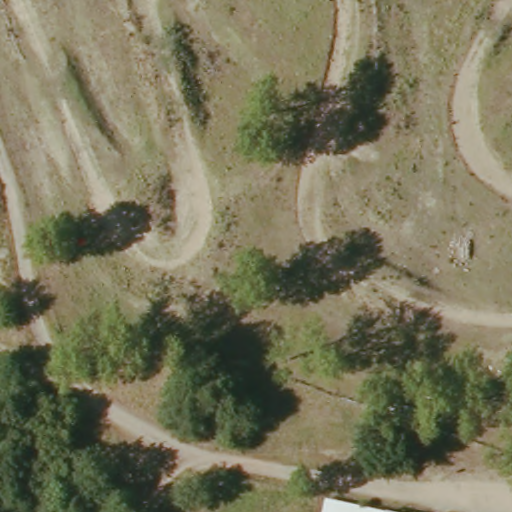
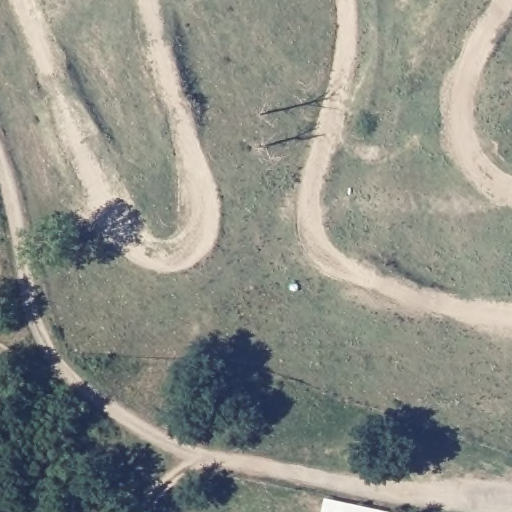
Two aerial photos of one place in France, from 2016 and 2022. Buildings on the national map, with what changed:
unchanged [(305,495),(328,500),(382,512),(311,512),(302,510),(305,495)]

